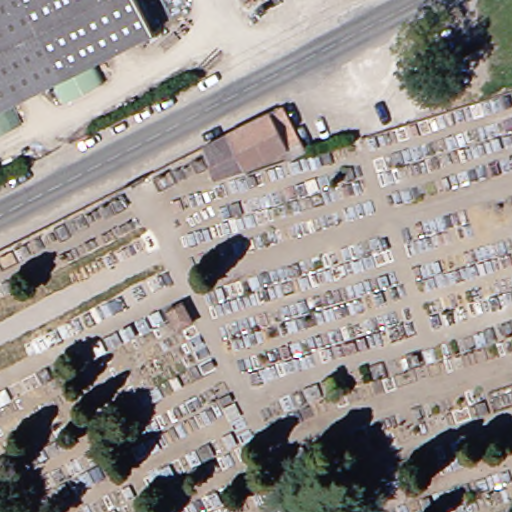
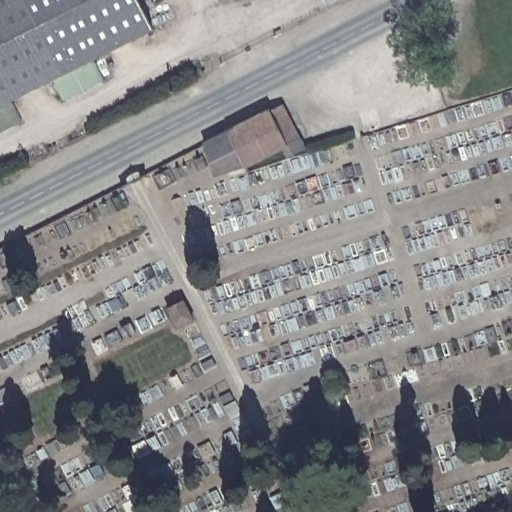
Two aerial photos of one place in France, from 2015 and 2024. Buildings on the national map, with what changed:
unchanged [(0,0),(34,0),(73,76),(0,113),(0,0)]
unchanged [(34,0),(149,0),(164,29),(73,76),(34,0)]
unchanged [(232,131),(285,104),(308,149),(292,157),(287,147),(249,165),(232,131)]
unchanged [(232,131),(249,165),(217,174),(207,144),(232,131)]

